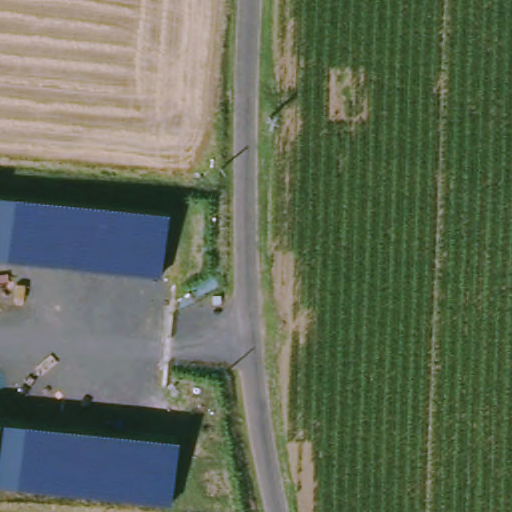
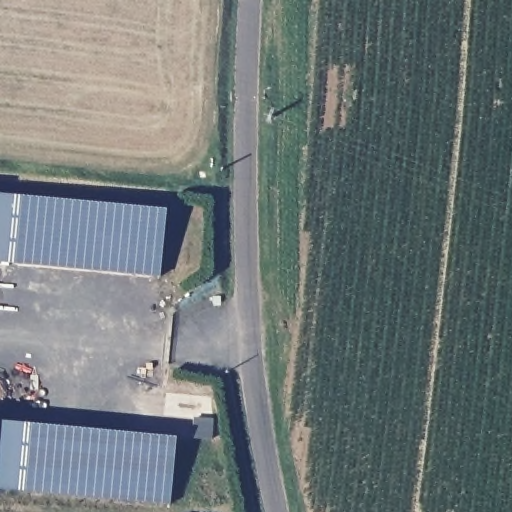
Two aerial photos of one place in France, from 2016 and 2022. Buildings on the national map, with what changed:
unchanged [(166,281),(0,265),(0,197),(169,212),(166,281)]
unchanged [(173,510),(0,494),(0,425),(179,442),(173,510)]

